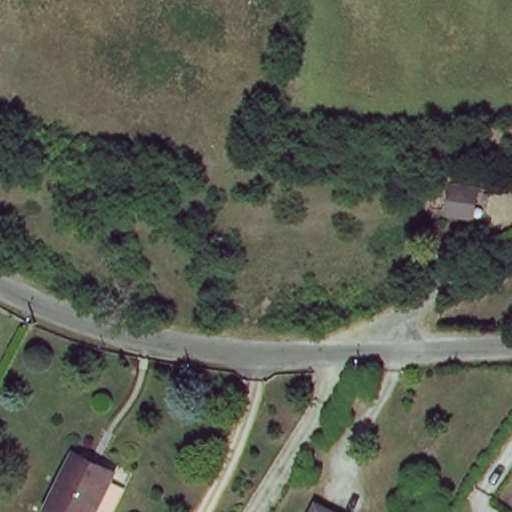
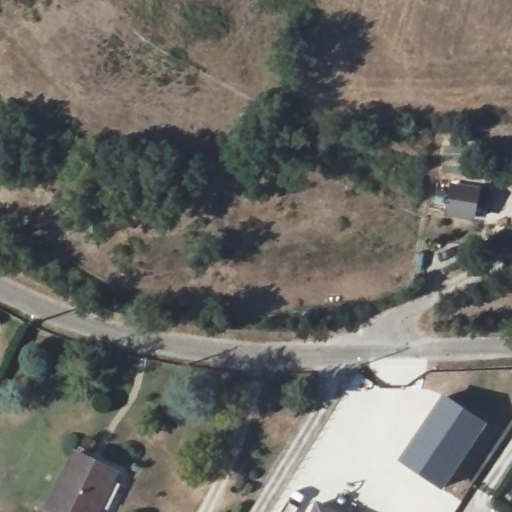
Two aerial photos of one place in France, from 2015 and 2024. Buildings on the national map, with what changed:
unchanged [(483,193),(476,215),(453,209),(458,188),(483,193)]
new [(442,394),(486,424),(442,490),(398,460),(442,394)]
unchanged [(101,512),(56,512),(52,510),(82,454),(121,473),(101,512)]
unchanged [(339,512),(319,512),(322,504),(339,512)]

